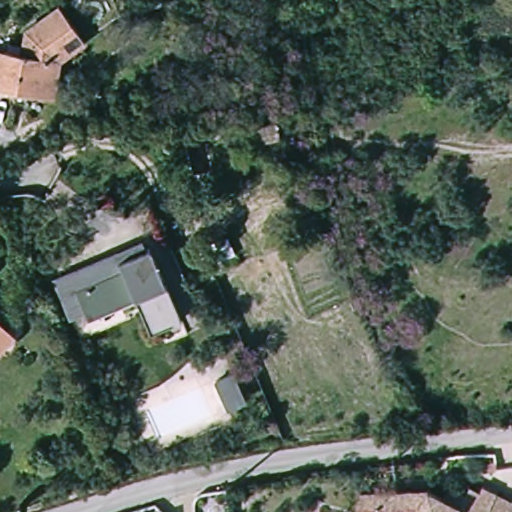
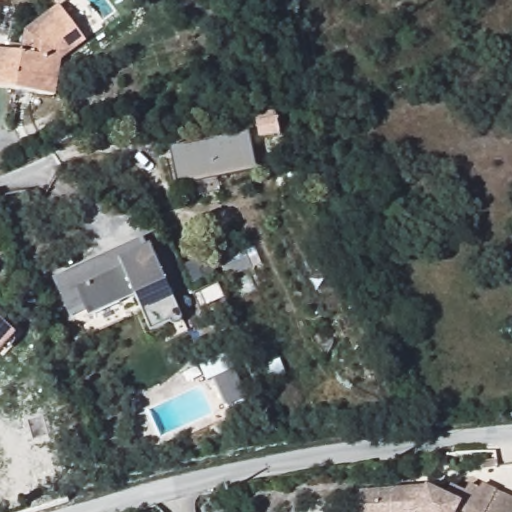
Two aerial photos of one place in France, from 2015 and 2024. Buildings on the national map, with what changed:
unchanged [(52,100),(0,92),(0,53),(20,55),(24,30),(61,9),(83,44),(58,60),(52,100)]
unchanged [(262,143),(255,119),(272,117),(280,139),(262,143)]
new [(177,186),(170,146),(251,131),(258,171),(177,186)]
unchanged [(54,277),(143,235),(167,286),(138,300),(75,328),(54,277)]
unchanged [(183,321),(154,335),(138,300),(167,286),(183,321)]
unchanged [(0,319),(21,337),(2,357),(0,356),(0,319)]
unchanged [(217,382),(237,374),(248,408),(229,414),(217,382)]
unchanged [(440,483),(472,495),(476,486),(488,490),(490,485),(503,488),(495,512),(375,512),(370,495),(440,483)]

